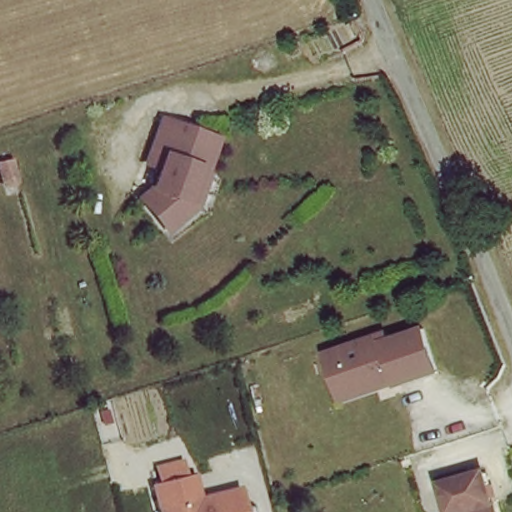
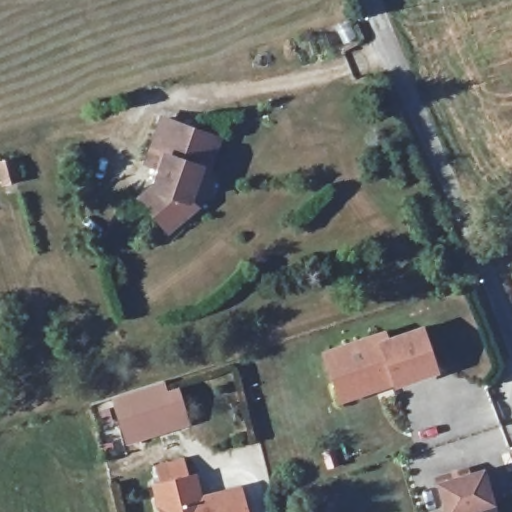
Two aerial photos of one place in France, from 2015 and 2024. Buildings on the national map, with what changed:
unchanged [(190,209),(165,231),(137,198),(148,189),(154,171),(142,165),(157,122),(213,138),(204,171),(195,210),(190,209)]
unchanged [(328,383),(317,351),(369,333),(376,331),(379,338),(414,326),(429,369),(389,383),(388,381),(334,400),(328,383)]
new [(175,385),(187,428),(121,448),(110,404),(175,385)]
unchanged [(150,483),(158,481),(154,465),(184,458),(189,475),(189,477),(197,475),(202,494),(241,486),(248,512),(158,512),(150,483)]
unchanged [(432,478),(461,470),(463,475),(477,470),(488,508),(490,512),(443,512),(432,478)]

